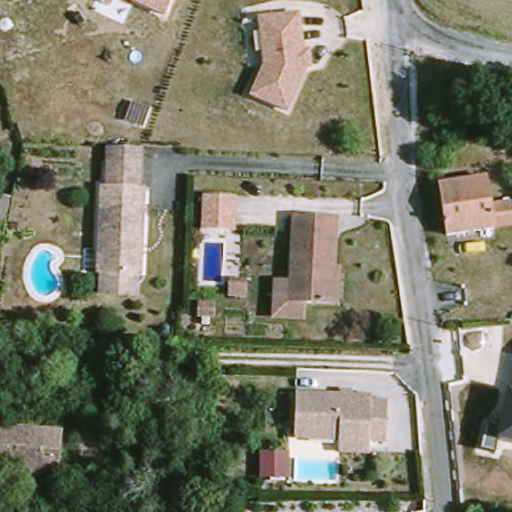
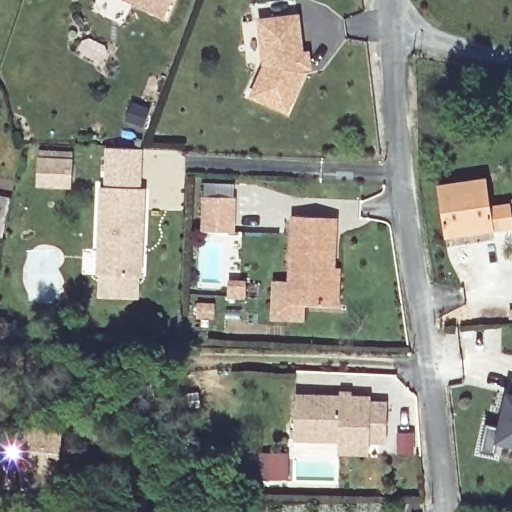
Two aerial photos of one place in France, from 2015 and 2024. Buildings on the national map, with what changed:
unchanged [(173,0),(165,17),(126,0),(173,0)]
unchanged [(250,94),(263,63),(258,16),(300,12),(304,49),(309,48),(310,68),(306,69),(289,112),(250,94)]
unchanged [(97,292),(98,272),(96,272),(102,186),(106,187),(108,162),(109,148),(142,149),(141,164),(140,189),(145,189),(139,276),(133,275),(132,295),(97,292)]
new [(33,160),(69,161),(67,187),(32,186),(33,160)]
unchanged [(507,198),(512,197),(512,226),(458,236),(449,181),(503,172),(507,198)]
unchanged [(248,194),(247,226),(218,225),(220,193),(248,194)]
unchanged [(272,319),(273,278),(287,279),(291,215),(338,218),(336,267),(342,267),(339,307),(306,305),(306,322),(272,319)]
unchanged [(505,390),(509,391),(512,380),(512,445),(494,441),(505,390)]
unchanged [(351,448),(351,437),(306,435),(307,392),(381,394),(381,399),(398,400),(397,437),(381,437),(381,450),(351,448)]
unchanged [(62,472),(24,466),(21,484),(2,481),(12,423),(69,433),(62,472)]
unchanged [(74,435),(63,496),(20,488),(21,484),(24,466),(62,472),(69,433),(74,435)]

